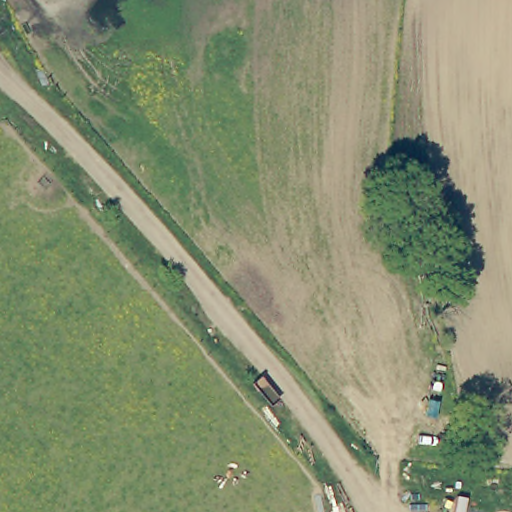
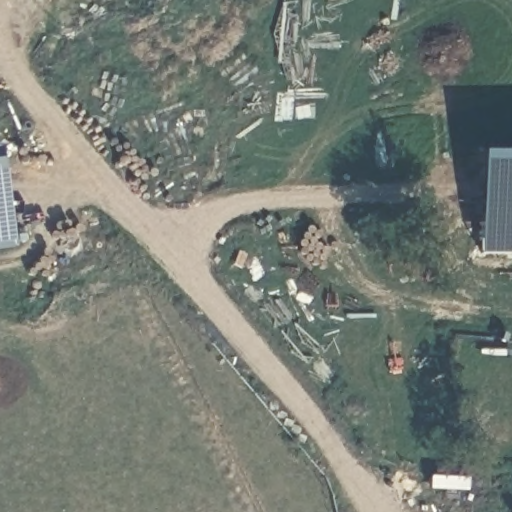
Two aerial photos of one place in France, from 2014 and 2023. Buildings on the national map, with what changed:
new [(512,152),(512,254),(479,253),(484,152),(512,152)]
new [(0,245),(0,174),(15,243),(0,245)]

